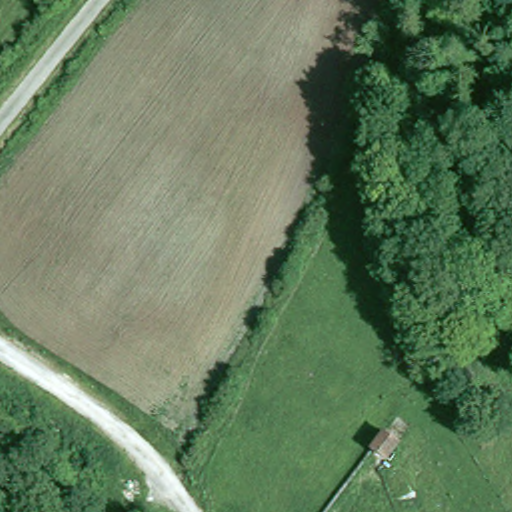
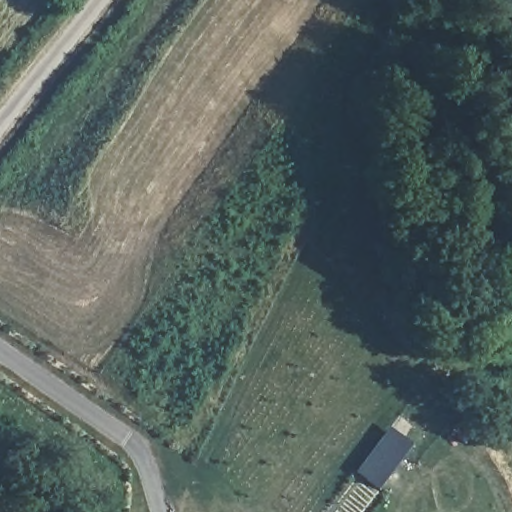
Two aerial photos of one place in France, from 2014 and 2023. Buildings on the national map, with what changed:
new [(375,488),(354,472),(387,426),(409,442),(375,488)]
demolished [(388,463),(374,451),(387,437),(400,447),(388,463)]
unchanged [(116,512),(110,512),(113,509),(116,512)]

